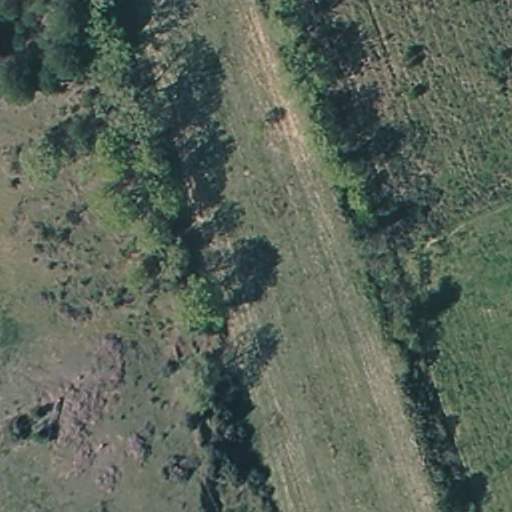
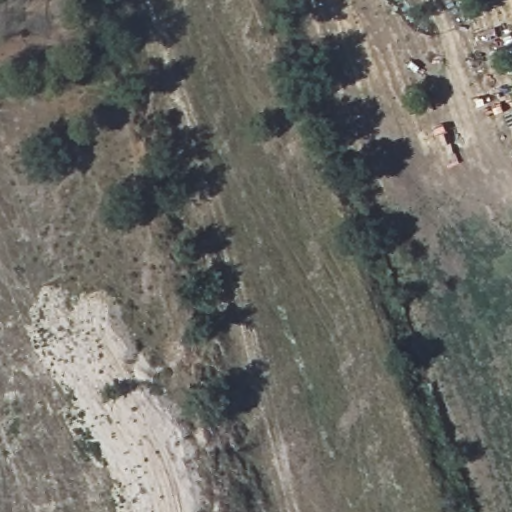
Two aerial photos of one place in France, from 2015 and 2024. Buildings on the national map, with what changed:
[]

